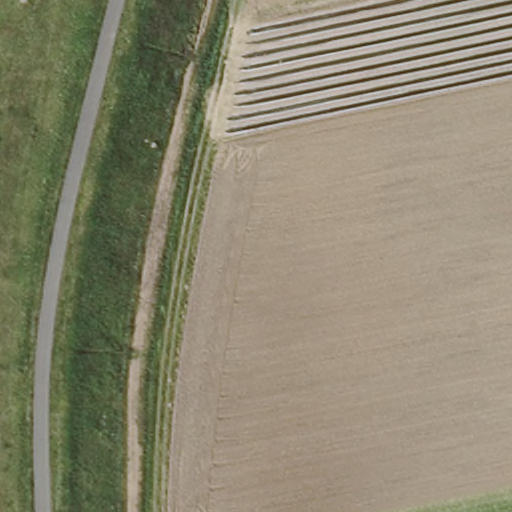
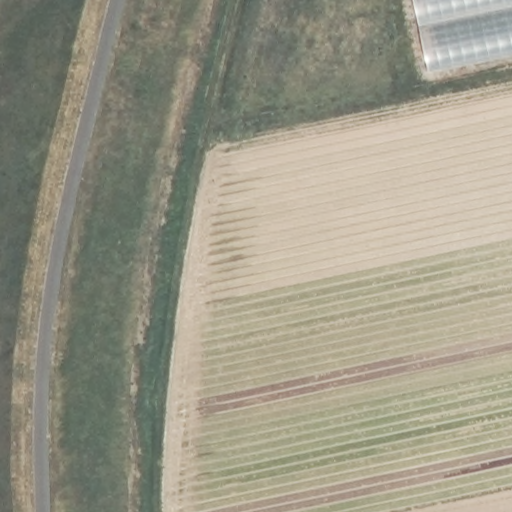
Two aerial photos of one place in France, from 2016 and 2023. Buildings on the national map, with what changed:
new [(430,71),(415,0),(512,0),(512,54),(430,71)]

